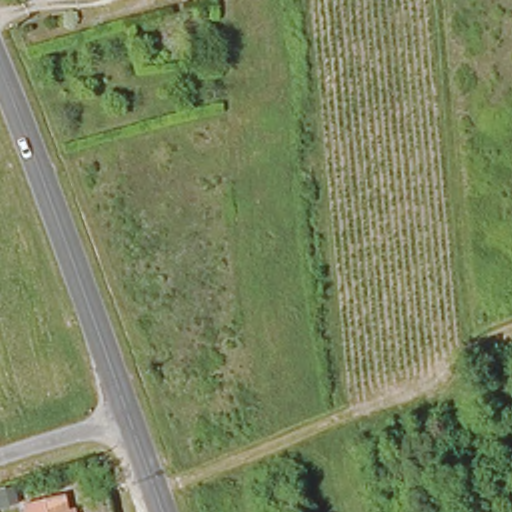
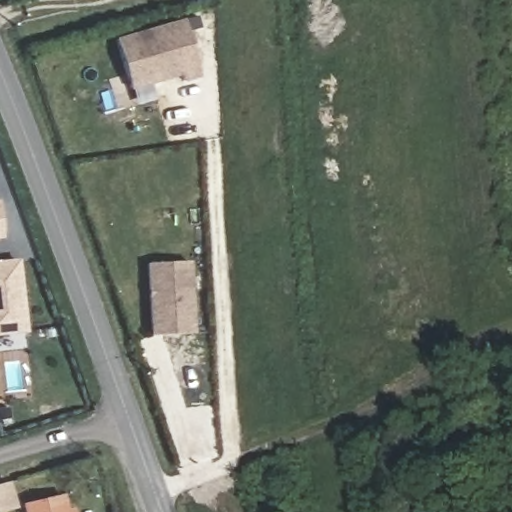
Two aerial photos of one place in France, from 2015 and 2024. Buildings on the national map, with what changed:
new [(131,91),(117,38),(184,18),(202,77),(183,83),(181,75),(131,91)]
new [(1,235),(0,235),(0,227),(1,235)]
new [(0,350),(0,261),(17,259),(22,297),(23,306),(26,329),(27,346),(0,350)]
new [(146,264),(191,261),(196,333),(151,336),(146,264)]
new [(11,482),(18,508),(5,512),(0,512),(0,486),(11,482)]
unchanged [(49,512),(20,512),(19,507),(45,500),(49,512)]
unchanged [(60,512),(58,512),(60,511),(60,512)]

